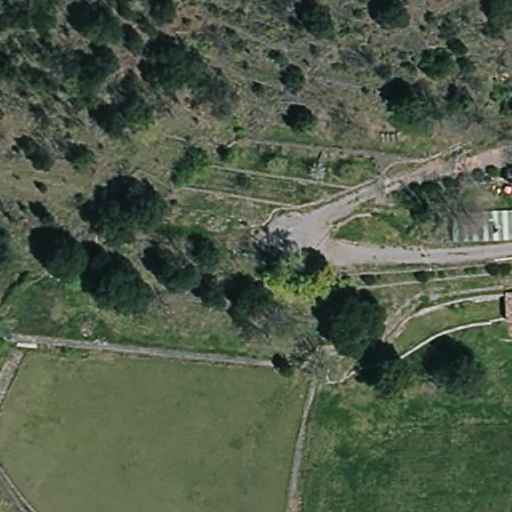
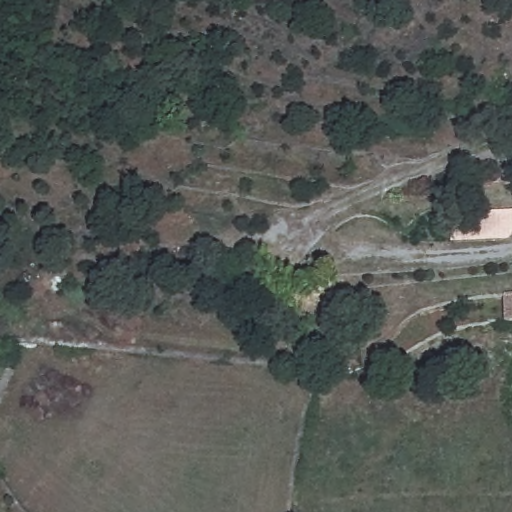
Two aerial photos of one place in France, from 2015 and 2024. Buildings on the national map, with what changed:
unchanged [(512,324),(506,324),(505,292),(512,292),(512,324)]

